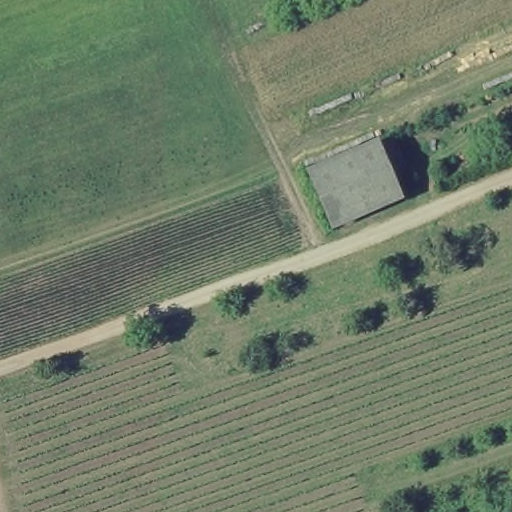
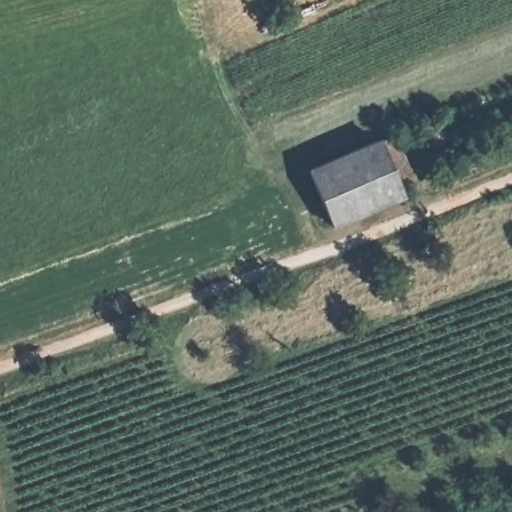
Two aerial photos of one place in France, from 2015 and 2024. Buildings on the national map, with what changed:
unchanged [(337,223),(312,168),(382,136),(407,193),(337,223)]

